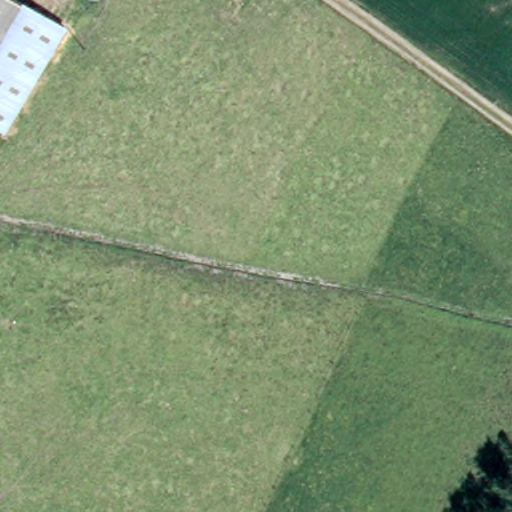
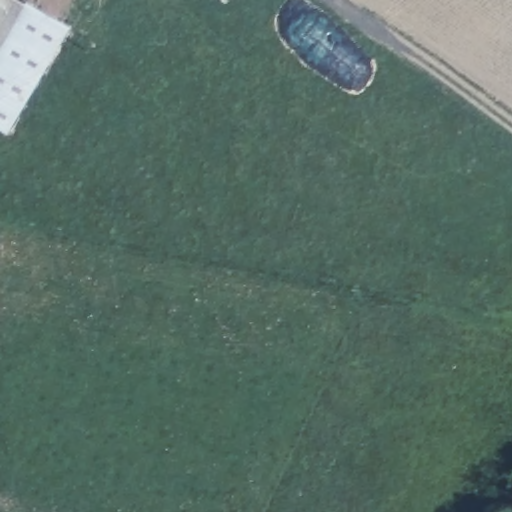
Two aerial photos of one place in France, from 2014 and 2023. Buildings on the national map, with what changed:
unchanged [(0,42),(0,0),(18,0),(23,3),(66,29),(5,133),(0,130),(0,42)]

